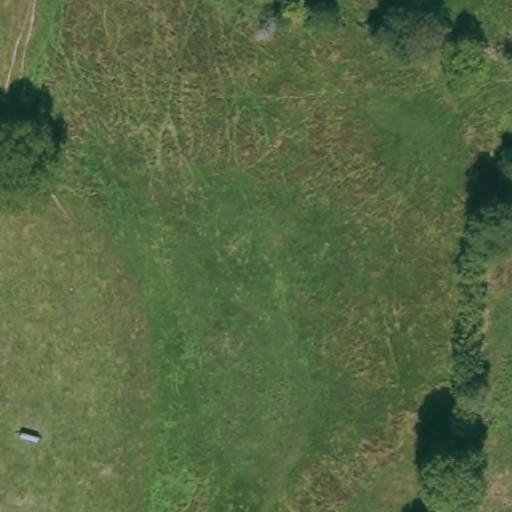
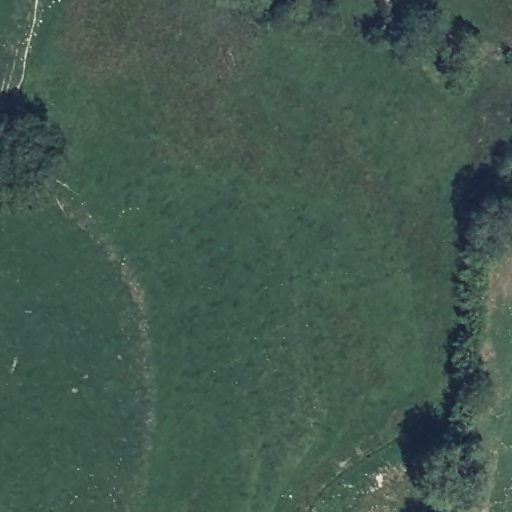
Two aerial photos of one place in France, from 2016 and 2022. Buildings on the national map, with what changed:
[]

